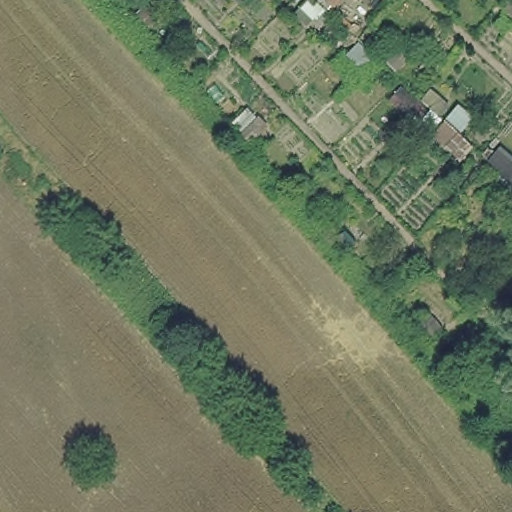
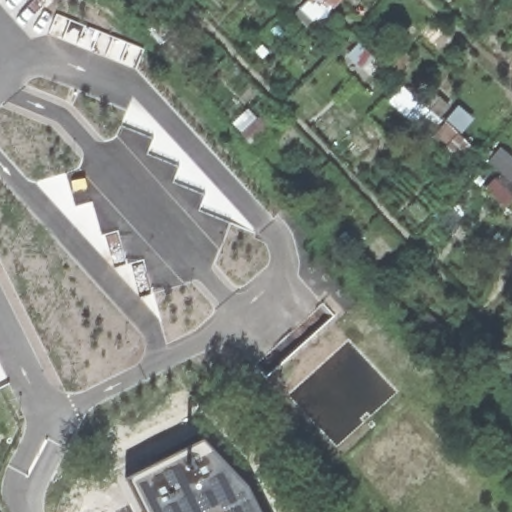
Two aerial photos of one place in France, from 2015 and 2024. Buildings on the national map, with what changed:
unchanged [(320,0),(345,0),(334,13),(320,0)]
new [(196,433),(247,486),(260,512),(146,512),(126,469),(196,433)]

